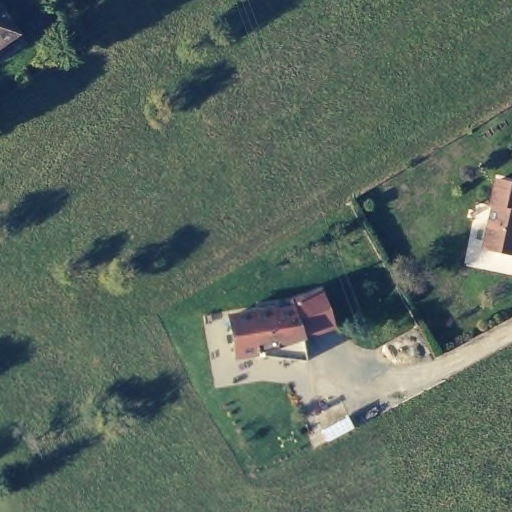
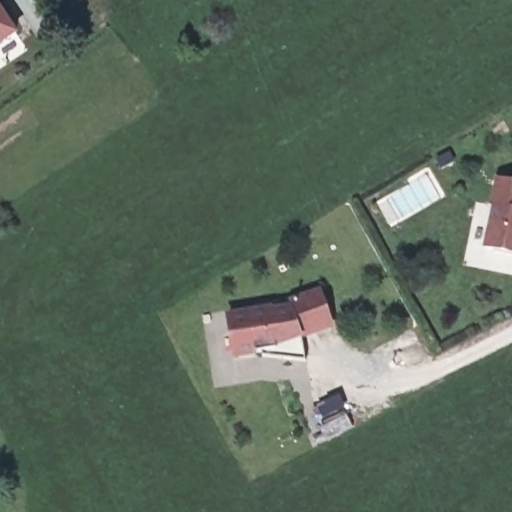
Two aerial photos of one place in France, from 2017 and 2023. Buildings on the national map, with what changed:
unchanged [(0,52),(0,16),(17,41),(0,52)]
unchanged [(512,181),(512,253),(485,249),(497,179),(512,181)]
unchanged [(292,307),(290,302),(323,291),(339,330),(307,341),(260,350),(260,355),(234,360),(230,314),(292,307)]

